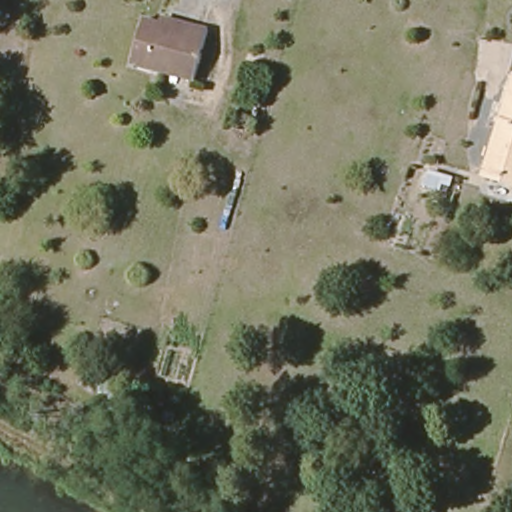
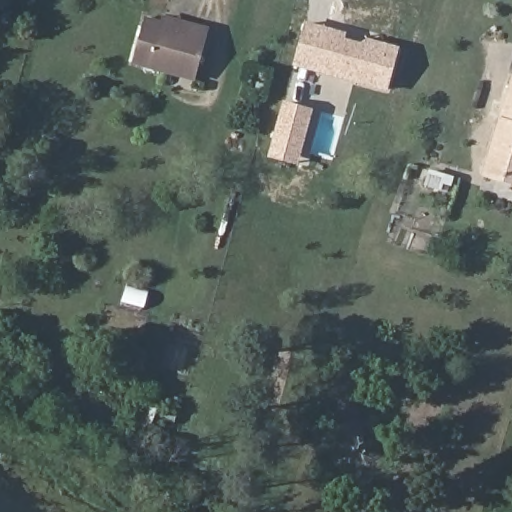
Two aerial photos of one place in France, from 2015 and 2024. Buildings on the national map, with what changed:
unchanged [(191,78),(132,62),(144,18),(160,22),(162,15),(191,23),(205,26),(191,78)]
new [(346,32),(345,39),(360,42),(367,38),(400,47),(387,92),(293,67),(305,21),(346,32)]
unchanged [(512,84),(512,185),(482,176),(512,84)]
new [(313,110),(298,165),(268,157),(283,101),(313,110)]

